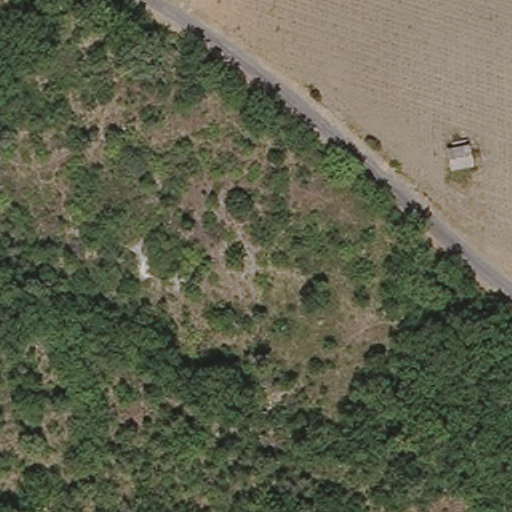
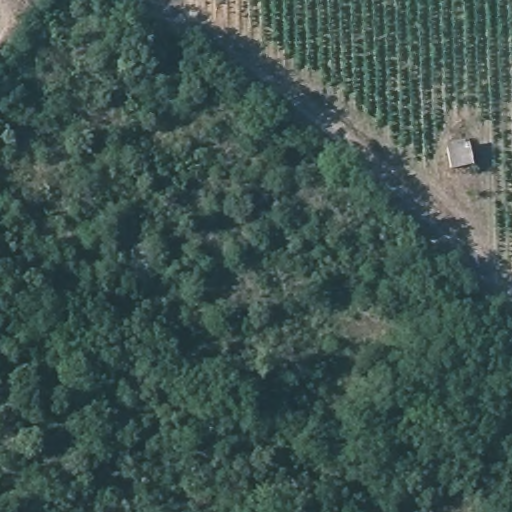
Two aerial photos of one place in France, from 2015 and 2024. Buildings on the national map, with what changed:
unchanged [(448,149),(455,149),(454,135),(473,135),(473,167),(448,167),(448,149)]

